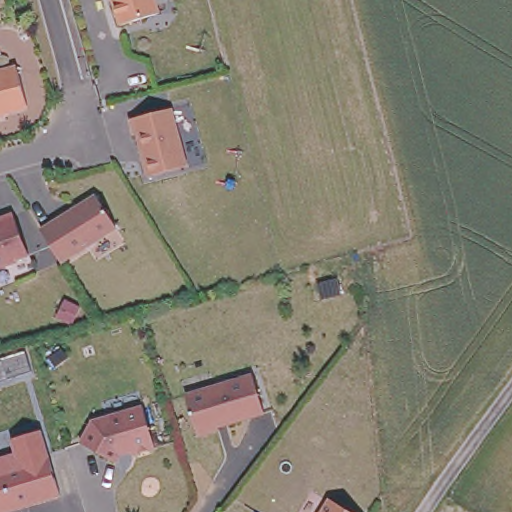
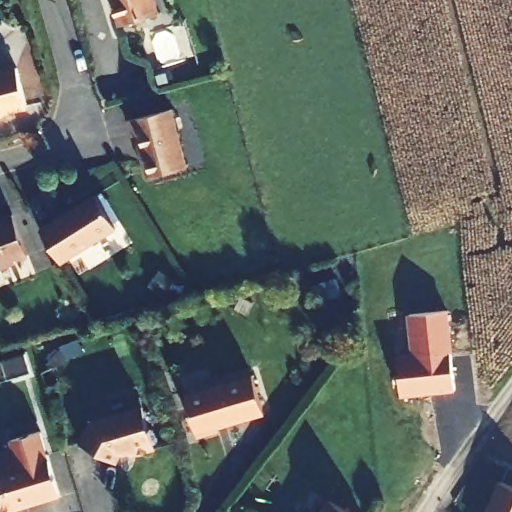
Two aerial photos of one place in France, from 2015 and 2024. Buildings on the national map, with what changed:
unchanged [(124,23),(116,0),(158,0),(162,10),(124,23)]
unchanged [(30,105),(0,113),(0,72),(19,66),(30,105)]
unchanged [(146,109),(175,103),(189,160),(164,167),(150,170),(140,128),(137,129),(132,113),(146,109)]
unchanged [(99,190),(120,222),(65,258),(64,255),(45,226),(99,190)]
unchanged [(30,250),(18,255),(19,258),(0,264),(0,215),(15,209),(30,250)]
new [(455,392),(400,397),(397,363),(411,362),(407,314),(450,310),(455,392)]
unchanged [(251,372),(262,411),(217,424),(217,427),(195,434),(184,392),(251,372)]
unchanged [(130,452),(129,449),(118,452),(114,459),(79,441),(91,418),(141,404),(154,444),(130,452)]
unchanged [(10,439),(42,431),(61,498),(10,512),(0,512),(0,457),(15,453),(10,439)]
new [(489,511),(502,481),(512,485),(512,512),(491,512),(489,511)]
unchanged [(327,491),(362,512),(314,512),(327,491)]

